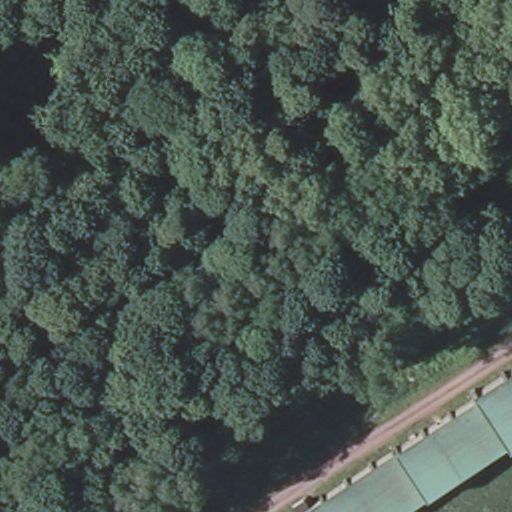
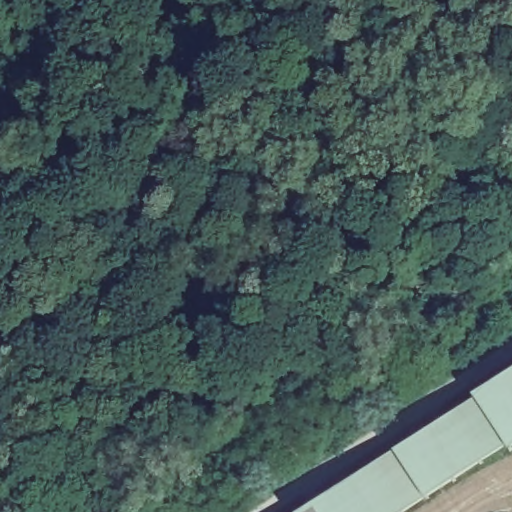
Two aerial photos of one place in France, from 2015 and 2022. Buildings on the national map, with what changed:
unchanged [(320,498),(323,495),(325,498),(346,484),(345,482),(347,480),(350,482),(370,468),(369,466),(372,464),(374,466),(395,452),(394,450),(397,448),(399,450),(422,435),(420,432),(424,430),(425,433),(449,417),(447,415),(450,413),(452,416),(475,400),(471,394),(475,392),(477,395),(502,378),(500,375),(505,372),(507,375),(512,371),(512,454),(507,448),(485,463),(485,466),(482,468),(480,465),(457,481),(458,483),(455,485),(454,483),(430,498),(430,501),(428,502),(427,500),(407,512),(303,512),(321,500),(320,498)]
unchanged [(300,512),(298,512),(300,511),(300,512)]

